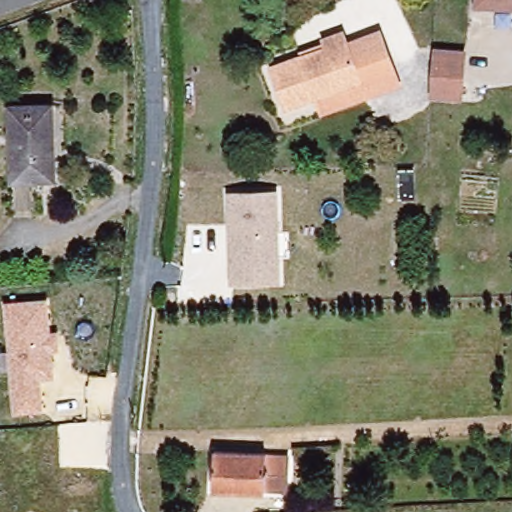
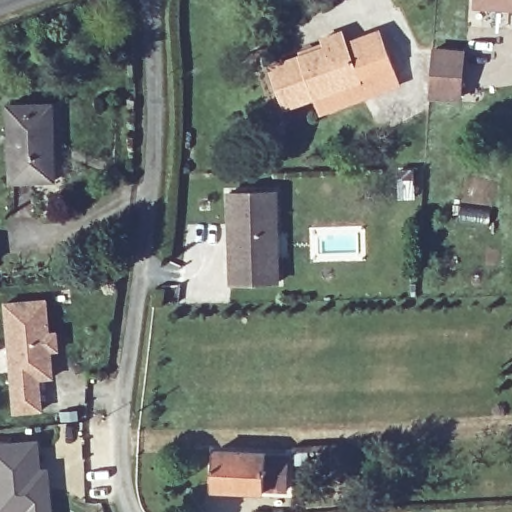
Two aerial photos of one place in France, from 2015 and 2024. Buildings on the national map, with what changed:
unchanged [(475,0),(512,0),(512,10),(475,9),(475,0)]
unchanged [(345,83),(343,79),(375,67),(369,47),(363,31),(380,24),(401,84),(320,115),(312,96),(345,83)]
unchanged [(343,79),(345,83),(273,111),(258,69),(315,48),(312,39),(326,32),(332,44),(363,31),(369,47),(375,67),(343,79)]
unchanged [(461,54),(457,98),(430,96),(435,51),(461,54)]
unchanged [(51,105),(51,179),(15,179),(19,104),(51,105)]
unchanged [(276,189),(281,283),(228,284),(225,192),(276,189)]
unchanged [(46,297),(49,329),(57,329),(60,352),(51,353),(54,378),(40,380),(44,411),(13,414),(2,302),(46,297)]
new [(36,469),(44,468),(45,488),(47,512),(0,512),(0,443),(33,440),(36,469)]
unchanged [(288,458),(287,491),(270,489),(270,494),(219,494),(218,454),(269,457),(288,458)]

